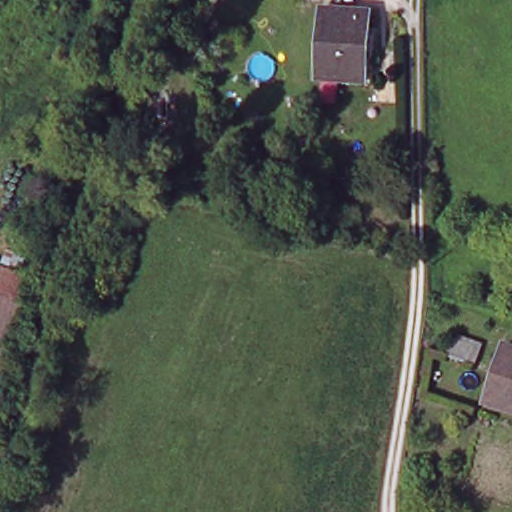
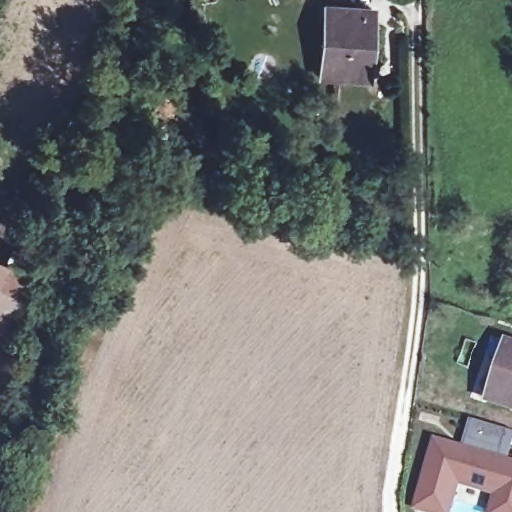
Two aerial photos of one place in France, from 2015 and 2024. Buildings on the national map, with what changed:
unchanged [(205,0),(221,0),(222,4),(205,7),(205,0)]
unchanged [(320,79),(324,9),(372,12),(369,81),(320,79)]
unchanged [(34,270),(25,299),(0,290),(0,258),(2,259),(34,270)]
unchanged [(27,299),(0,372),(0,290),(25,299),(27,299)]
unchanged [(489,402),(507,346),(512,347),(512,409),(489,402)]
new [(512,432),(512,451),(508,464),(512,466),(512,512),(490,512),(497,492),(452,479),(442,512),(434,512),(415,507),(435,443),(461,451),(470,419),(508,431),(512,432)]

